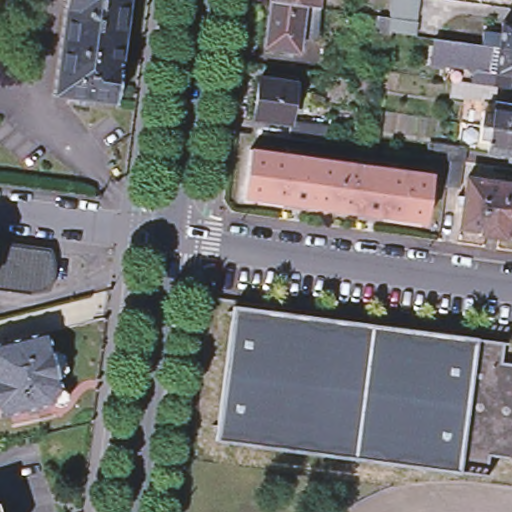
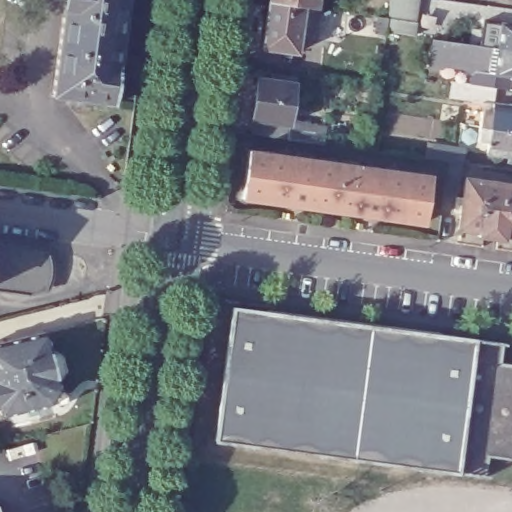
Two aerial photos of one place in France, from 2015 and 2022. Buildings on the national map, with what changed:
unchanged [(46,102),(60,0),(124,0),(109,110),(46,102)]
unchanged [(297,53),(263,48),(269,1),(269,0),(318,0),(317,7),(313,38),(299,36),(297,53)]
unchanged [(408,34),(386,31),(386,34),(375,32),(377,16),(388,18),(389,6),(390,0),(419,0),(418,10),(416,23),(417,23),(416,35),(408,34)]
unchanged [(510,77),(509,90),(471,84),(473,72),(470,71),(465,66),(445,63),(442,66),(430,64),(434,38),(479,45),(481,31),(499,34),(501,23),(512,25),(512,78),(510,77)]
unchanged [(251,129),(253,114),(259,74),(294,79),(289,119),(287,134),(251,129)]
unchanged [(479,126),(481,111),(492,113),(493,103),(509,106),(509,103),(512,104),(512,131),(479,126)]
unchanged [(512,131),(512,158),(503,156),(503,154),(486,152),(488,142),(477,141),(479,126),(512,131)]
unchanged [(450,188),(454,161),(439,159),(441,143),(471,148),(469,163),(465,190),(450,188)]
unchanged [(309,207),(311,203),(284,199),(283,204),(243,199),(249,150),(339,163),(333,211),(309,207)]
unchanged [(339,163),(391,170),(385,213),(357,209),(356,214),(333,211),(339,163)]
unchanged [(430,175),(424,223),(384,217),(385,213),(391,170),(430,175)]
unchanged [(512,185),(512,235),(510,235),(509,239),(483,236),(484,231),(464,229),(471,179),(512,185)]
unchanged [(51,259),(53,268),(53,276),(52,281),(48,291),(31,295),(0,291),(0,247),(48,253),(51,259)]
unchanged [(423,470),(283,451),(283,449),(216,441),(233,307),(269,312),(269,311),(441,333),(441,335),(474,339),(457,473),(423,468),(423,470)]
unchanged [(51,352),(54,351),(63,357),(66,372),(60,379),(57,380),(60,391),(63,393),(65,394),(66,397),(66,399),(66,401),(63,406),(60,407),(57,407),(53,404),(0,417),(0,344),(46,333),(51,352)]
unchanged [(506,343),(506,345),(502,345),(499,369),(512,371),(512,454),(488,451),(484,475),(489,475),(489,477),(457,473),(474,339),(506,343)]

